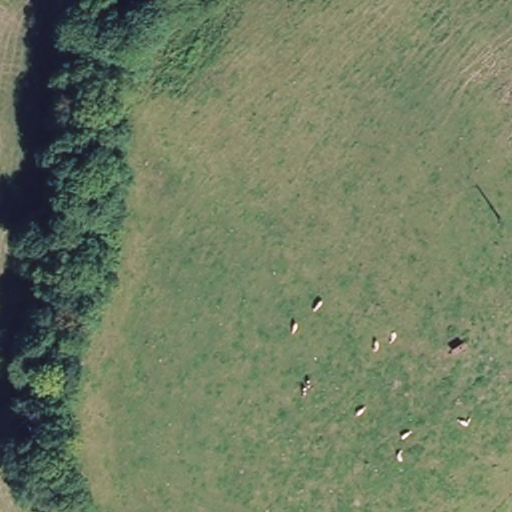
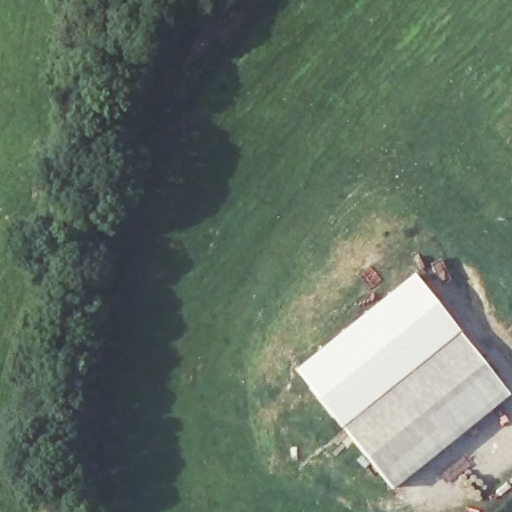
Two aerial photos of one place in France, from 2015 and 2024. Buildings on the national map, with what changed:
new [(459,332),(340,428),(293,369),(413,272),(459,332)]
new [(508,394),(390,489),(340,428),(459,332),(508,394)]

